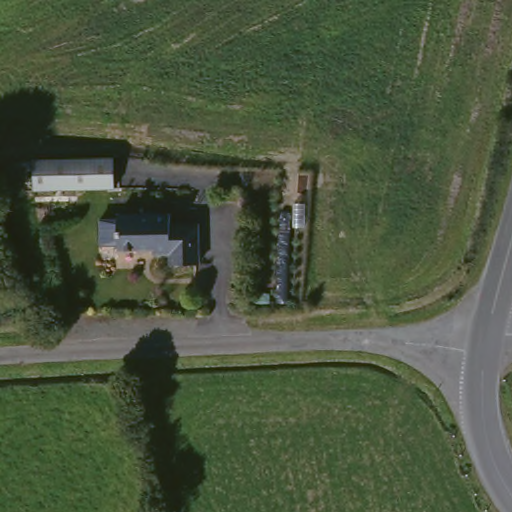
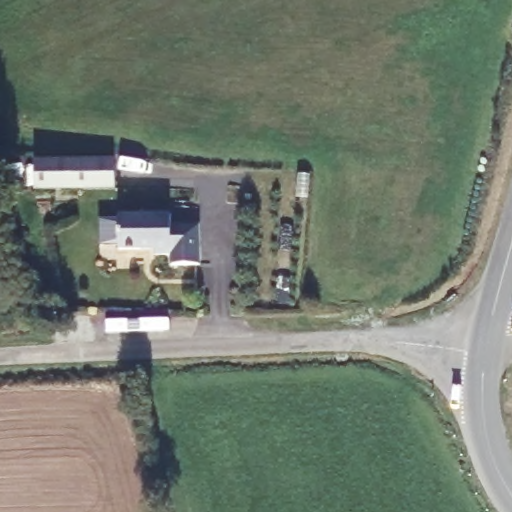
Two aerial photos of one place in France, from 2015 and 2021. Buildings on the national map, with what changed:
unchanged [(121,190),(44,189),(40,156),(121,156),(121,190)]
unchanged [(169,263),(167,254),(147,256),(147,249),(114,253),(110,217),(162,211),(163,222),(195,218),(200,260),(169,263)]

